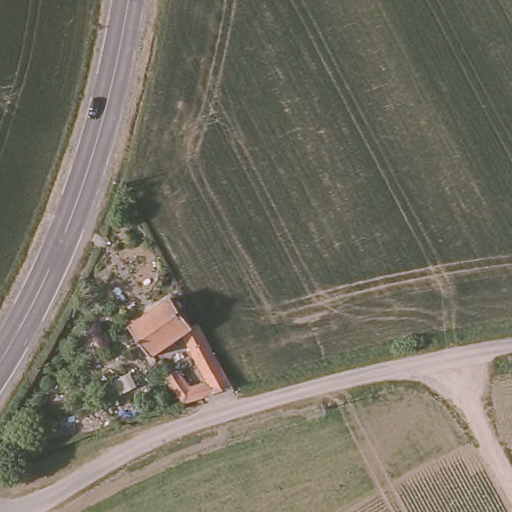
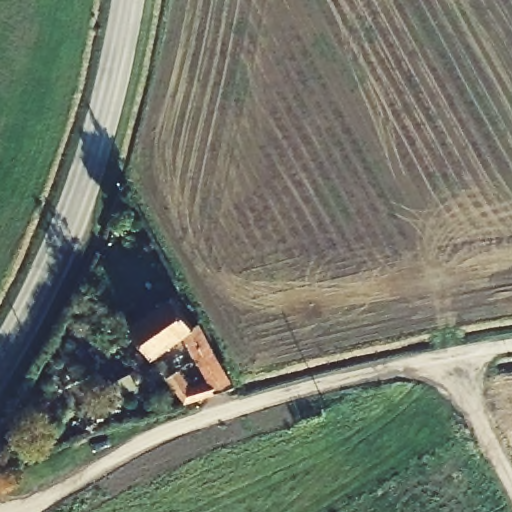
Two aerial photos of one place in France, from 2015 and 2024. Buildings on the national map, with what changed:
unchanged [(172,383),(183,376),(191,389),(210,379),(187,344),(160,359),(140,327),(183,300),(236,394),(187,408),(172,383)]
unchanged [(108,392),(132,379),(139,389),(115,404),(108,392)]

